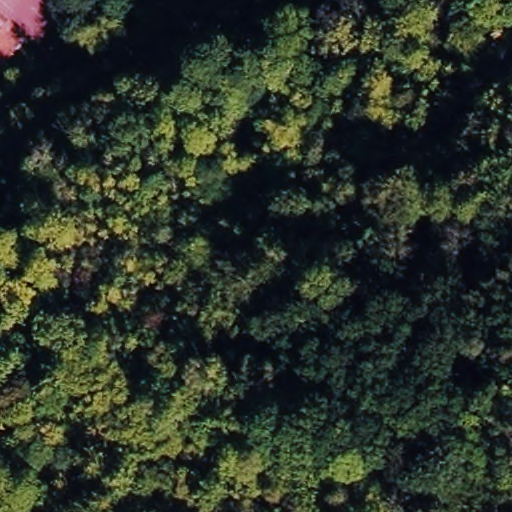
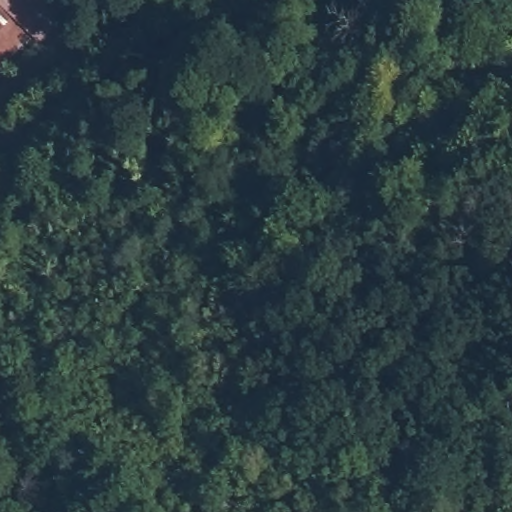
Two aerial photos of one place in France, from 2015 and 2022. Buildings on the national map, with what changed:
unchanged [(40,46),(30,37),(0,63),(0,0),(40,0),(63,21),(40,46)]

